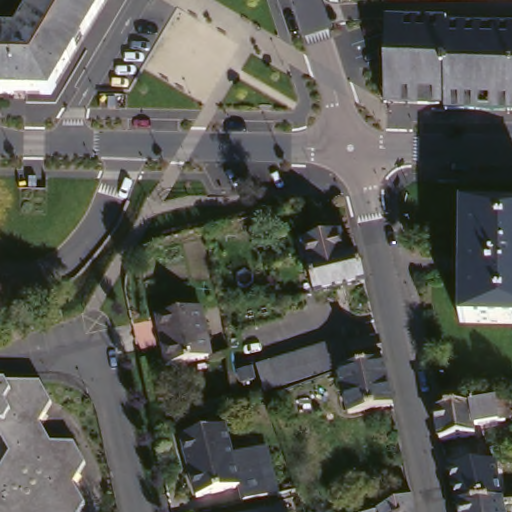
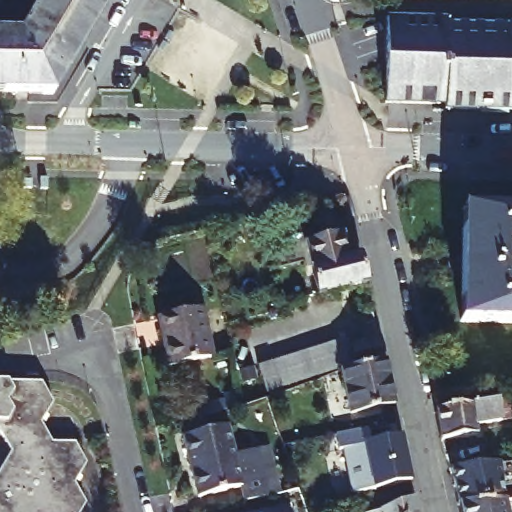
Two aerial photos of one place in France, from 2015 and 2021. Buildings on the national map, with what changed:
unchanged [(35,0),(105,0),(49,93),(0,93),(0,31),(16,31),(35,0)]
unchanged [(389,97),(390,13),(448,13),(448,18),(448,98),(389,97)]
unchanged [(512,104),(448,103),(448,98),(448,18),(512,19),(512,104)]
unchanged [(512,319),(458,317),(463,205),(512,207),(512,319)]
unchanged [(369,285),(319,297),(310,258),(305,234),(342,225),(347,248),(359,244),(369,285)]
unchanged [(200,307),(209,357),(167,365),(158,315),(200,307)]
unchanged [(376,354),(349,365),(344,348),(372,338),(376,354)]
unchanged [(387,407),(343,416),(334,373),(334,371),(377,361),(387,407)]
unchanged [(92,459),(79,478),(91,498),(82,512),(0,512),(0,471),(14,449),(0,425),(0,376),(45,377),(57,399),(46,418),(58,438),(80,439),(92,459)]
unchanged [(503,395),(505,415),(468,421),(469,434),(433,439),(427,406),(430,405),(503,395)]
unchanged [(276,492),(266,494),(237,502),(233,486),(191,496),(177,438),(224,426),(231,453),(256,448),(265,446),(276,492)]
new [(363,445),(371,443),(394,438),(403,483),(344,495),(336,451),(332,452),(329,436),(360,430),(363,445)]
unchanged [(485,503),(484,486),(512,485),(512,501),(506,501),(508,512),(463,512),(461,505),(485,503)]
unchanged [(417,494),(419,512),(367,512),(367,506),(387,499),(417,494)]
unchanged [(300,512),(264,512),(298,503),(300,512)]

